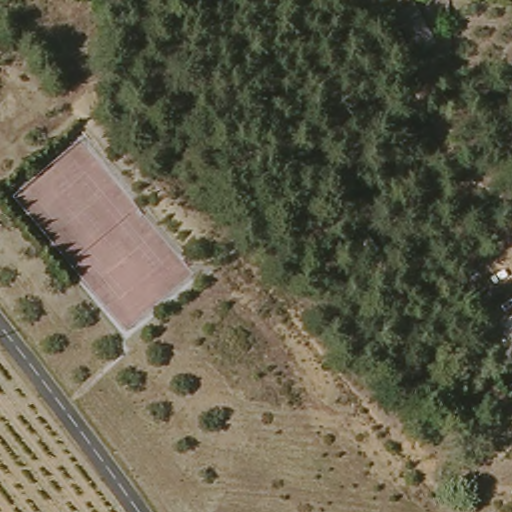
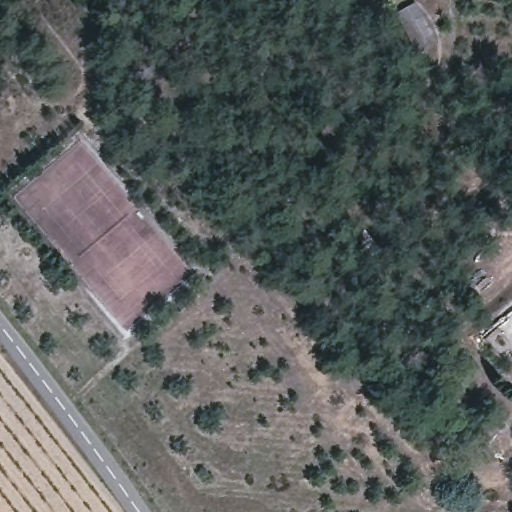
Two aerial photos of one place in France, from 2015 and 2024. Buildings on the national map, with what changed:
unchanged [(420,56),(395,10),(414,2),(440,46),(420,56)]

